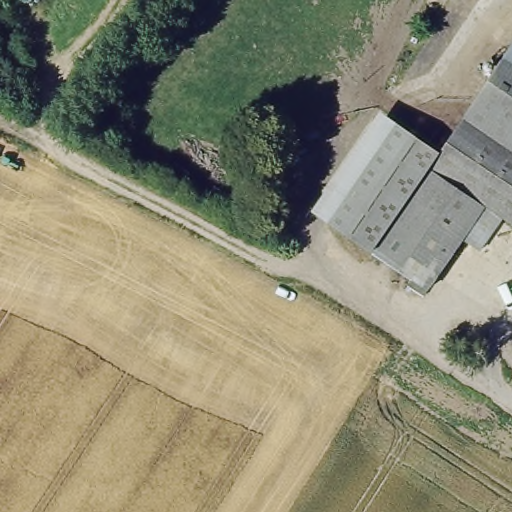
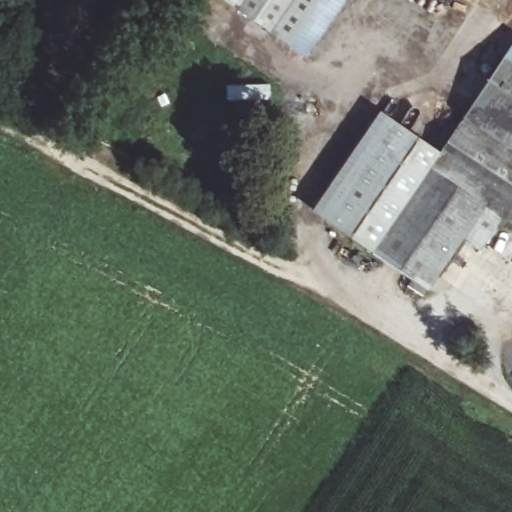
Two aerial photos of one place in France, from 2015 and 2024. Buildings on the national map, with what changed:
new [(222,0),(346,0),(306,58),(222,0)]
unchanged [(512,124),(472,96),(512,38),(512,124)]
unchanged [(472,96),(512,124),(512,213),(491,198),(428,288),(368,247),(435,150),(472,96)]
unchanged [(324,217),(392,120),(435,150),(368,247),(324,217)]

